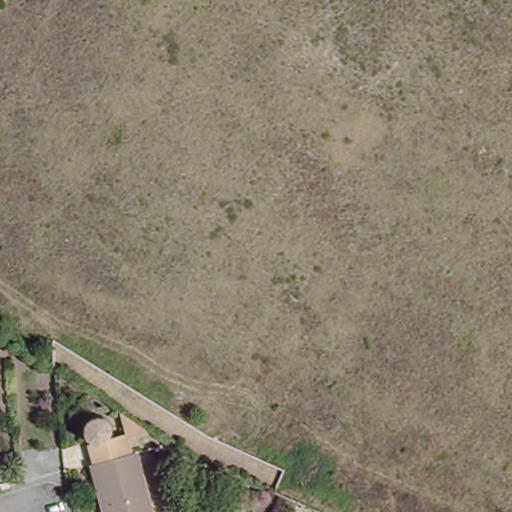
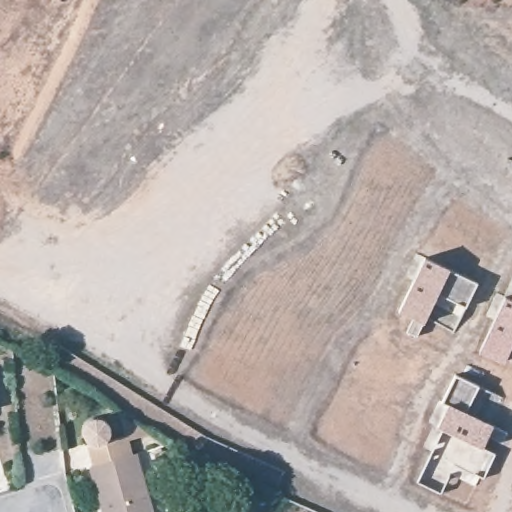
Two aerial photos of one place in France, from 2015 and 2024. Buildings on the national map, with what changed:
new [(479,281),(466,308),(438,294),(425,322),(400,311),(425,256),(479,281)]
new [(481,349),(506,296),(512,299),(512,345),(505,360),(481,349)]
new [(481,386),(469,413),(495,425),(485,447),(445,426),(439,423),(448,403),(443,401),(456,374),(481,386)]
unchanged [(98,439),(95,439),(93,439),(91,437),(88,434),(87,429),(88,426),(91,423),(95,421),(100,421),(102,423),(103,424),(105,428),(106,430),(105,433),(105,435),(102,438),(98,439)]
new [(445,426),(485,447),(496,452),(485,477),(456,463),(443,491),(419,481),(445,426)]
unchanged [(98,486),(90,455),(135,442),(153,512),(108,512),(101,486),(98,486)]

